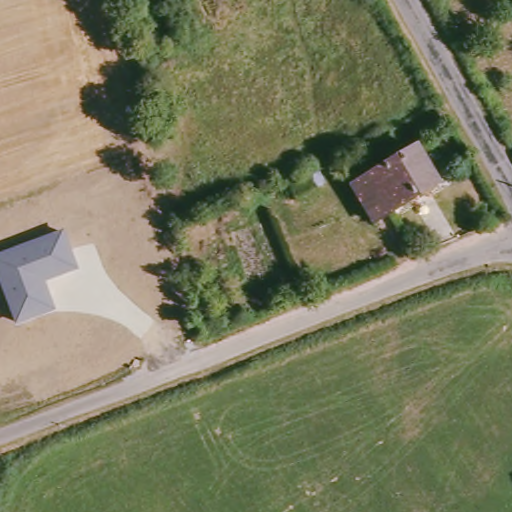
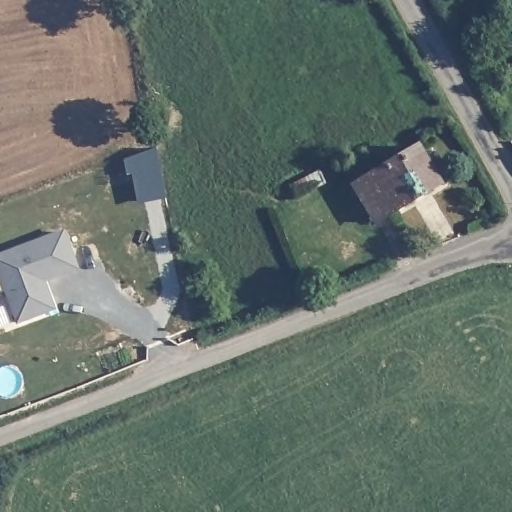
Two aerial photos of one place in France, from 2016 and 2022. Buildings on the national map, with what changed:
unchanged [(447,181),(382,219),(362,181),(427,144),(447,181)]
new [(155,146),(165,196),(137,201),(132,170),(125,171),(125,157),(155,146)]
unchanged [(46,282),(55,309),(15,323),(0,282),(0,254),(64,230),(77,269),(46,282)]

